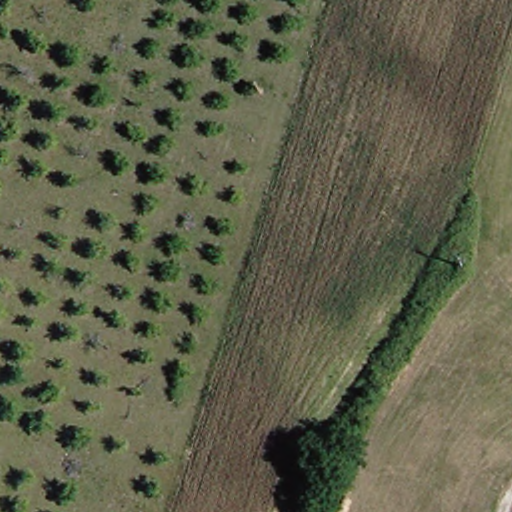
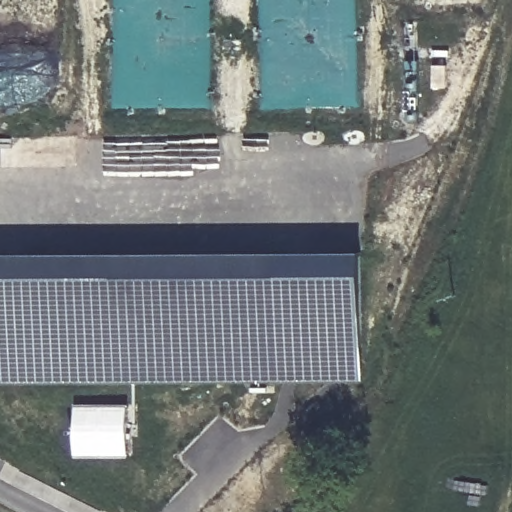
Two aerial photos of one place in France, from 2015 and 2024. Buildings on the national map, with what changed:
new [(406,54),(418,54),(417,115),(405,115),(406,54)]
new [(352,382),(0,381),(0,256),(353,256),(352,382)]
new [(78,407),(128,407),(128,456),(78,456),(78,436),(78,407)]

